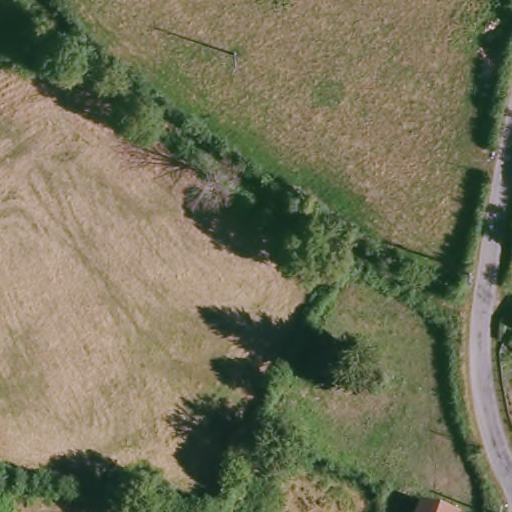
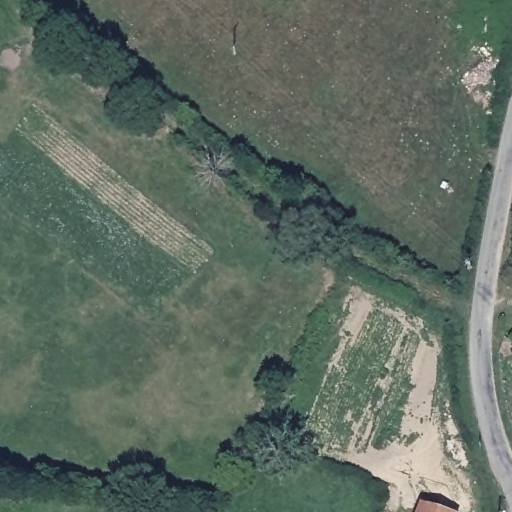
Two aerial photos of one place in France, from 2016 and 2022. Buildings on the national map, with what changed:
unchanged [(450,512),(424,512),(428,502),(450,512)]

